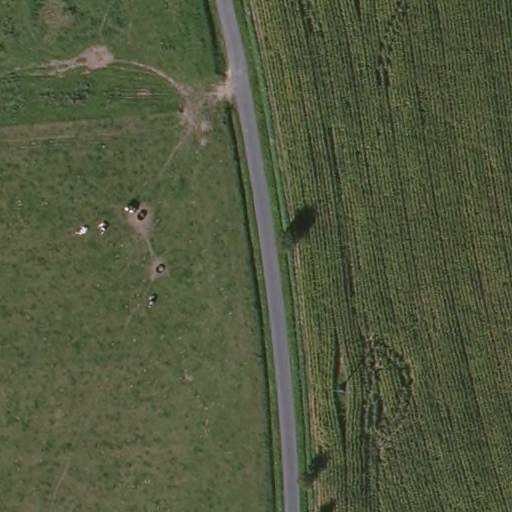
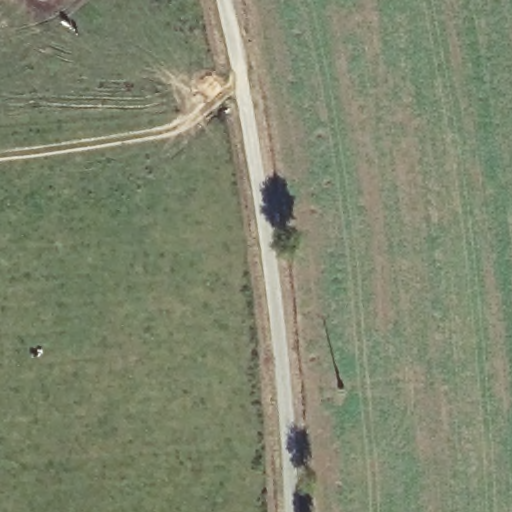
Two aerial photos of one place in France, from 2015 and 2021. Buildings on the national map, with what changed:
[]

